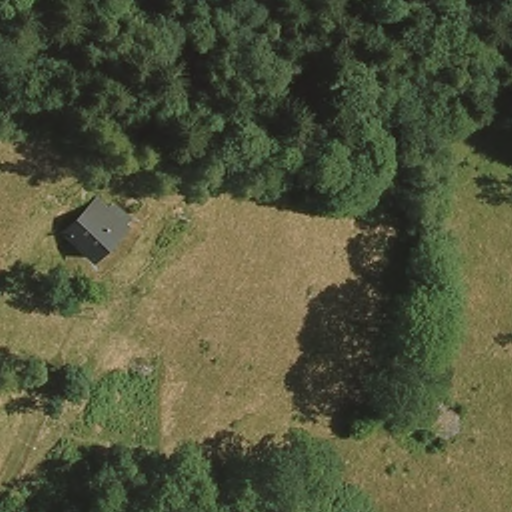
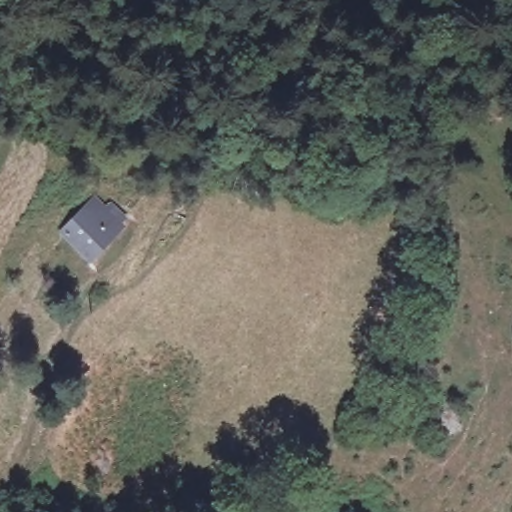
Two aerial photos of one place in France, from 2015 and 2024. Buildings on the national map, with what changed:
unchanged [(96,199),(120,224),(92,252),(67,227),(96,199)]

